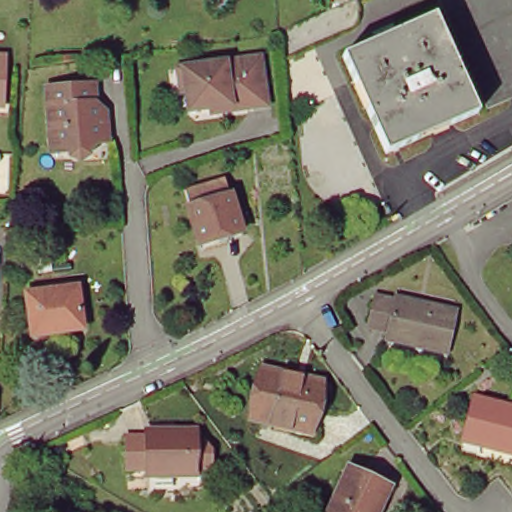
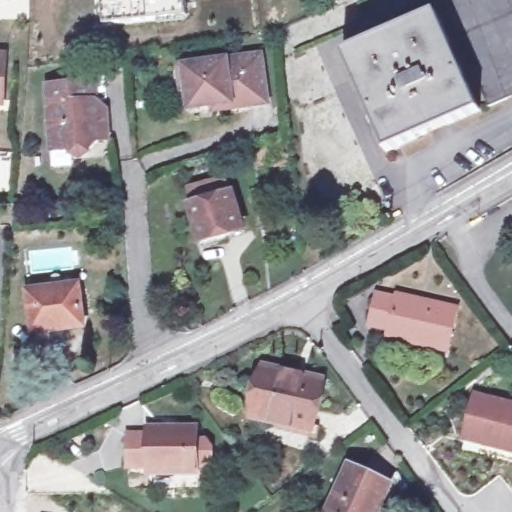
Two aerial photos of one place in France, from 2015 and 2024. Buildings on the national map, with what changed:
new [(104,26),(101,0),(186,0),(188,18),(104,26)]
unchanged [(440,0),(512,0),(512,101),(489,111),(440,0)]
unchanged [(388,154),(378,131),(383,129),(378,118),(373,120),(368,110),(374,108),(363,84),(358,86),(345,57),(439,16),(452,45),(446,48),(456,72),(462,70),(466,80),(460,83),(464,92),(471,90),(481,113),(450,127),(447,119),(416,133),(419,140),(407,145),(388,154)]
unchanged [(8,54),(6,105),(0,105),(0,54),(8,54)]
unchanged [(216,107),(204,108),(193,100),(191,90),(186,91),(183,68),(265,58),(271,105),(236,109),(217,112),(216,107)]
unchanged [(73,145),(55,147),(51,81),(99,79),(100,106),(110,106),(111,116),(112,135),(103,136),(94,145),(84,155),(73,145)]
unchanged [(194,206),(189,190),(228,178),(233,195),(234,195),(245,230),(202,244),(191,207),(194,206)]
unchanged [(31,329),(26,286),(48,284),(48,289),(81,285),(86,323),(31,329)]
unchanged [(391,330),(392,325),(374,321),(380,291),(394,294),(397,288),(458,305),(449,346),(391,330)]
unchanged [(259,415),(271,368),(326,382),(315,429),(259,415)]
unchanged [(481,393),(512,403),(512,447),(469,433),(481,393)]
unchanged [(124,470),(123,437),(141,434),(139,430),(193,425),(194,444),(203,443),(205,469),(192,470),(193,474),(143,478),(141,469),(124,470)]
unchanged [(333,509),(352,465),(391,485),(376,512),(339,512),(333,509)]

